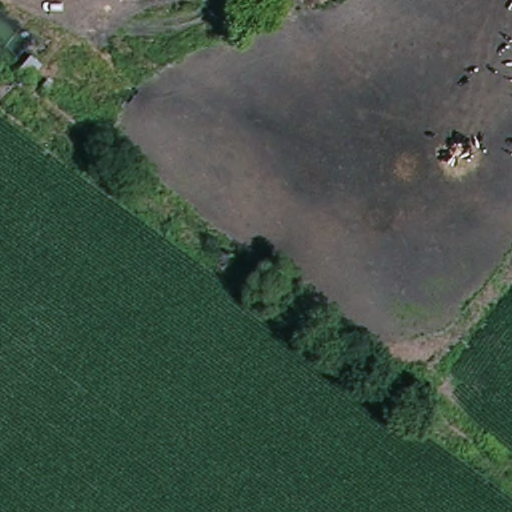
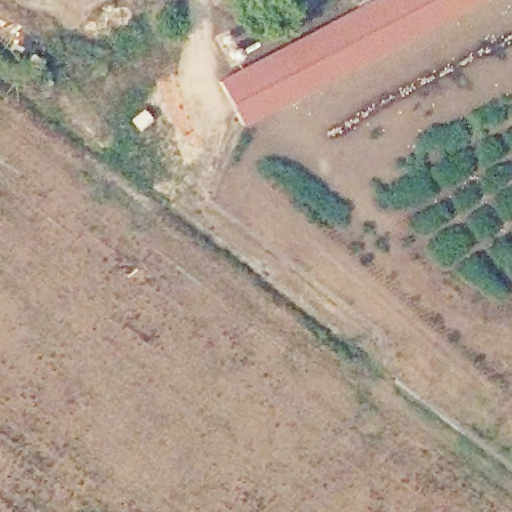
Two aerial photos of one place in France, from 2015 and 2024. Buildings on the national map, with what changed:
demolished [(59,0),(86,0),(65,10),(59,0)]
new [(370,0),(479,0),(242,126),(218,79),(370,0)]

